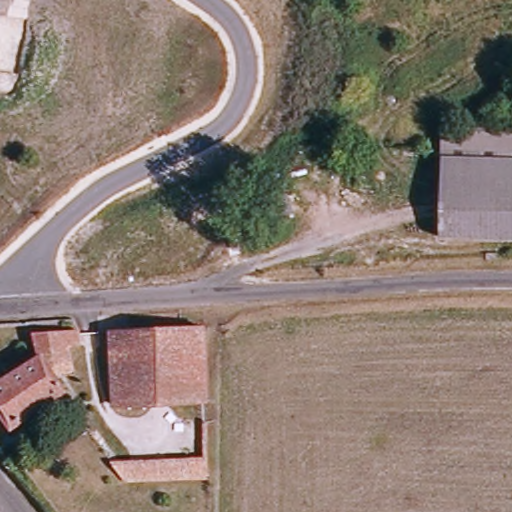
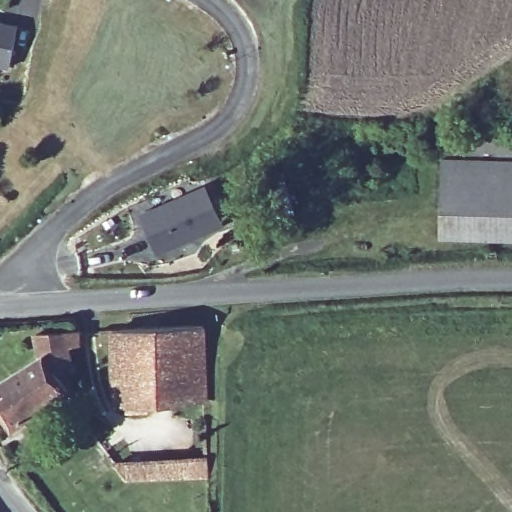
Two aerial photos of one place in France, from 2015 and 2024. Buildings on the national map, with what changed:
unchanged [(17,25),(9,67),(0,65),(0,21),(17,25)]
unchanged [(438,161),(441,130),(512,132),(512,244),(440,241),(438,161)]
new [(208,184),(224,222),(157,251),(141,212),(208,184)]
unchanged [(109,333),(196,324),(202,407),(116,413),(109,333)]
unchanged [(37,364),(38,343),(74,340),(78,360),(71,361),(69,375),(54,376),(67,401),(8,432),(0,419),(0,386),(37,364)]
unchanged [(205,480),(126,485),(107,466),(205,458),(205,480)]

